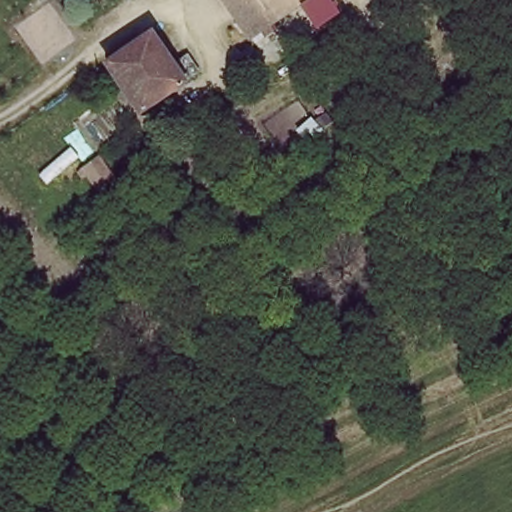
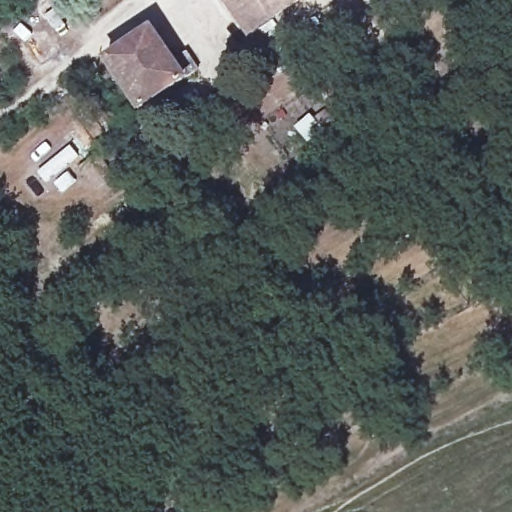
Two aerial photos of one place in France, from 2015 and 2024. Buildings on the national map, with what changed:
unchanged [(222,0),(302,0),(250,36),(222,0)]
unchanged [(144,36),(168,70),(189,55),(200,71),(140,112),(104,61),(144,36)]
unchanged [(90,191),(76,171),(98,155),(113,175),(90,191)]

